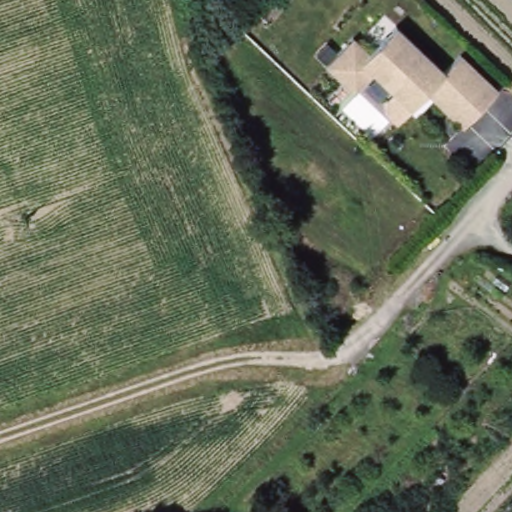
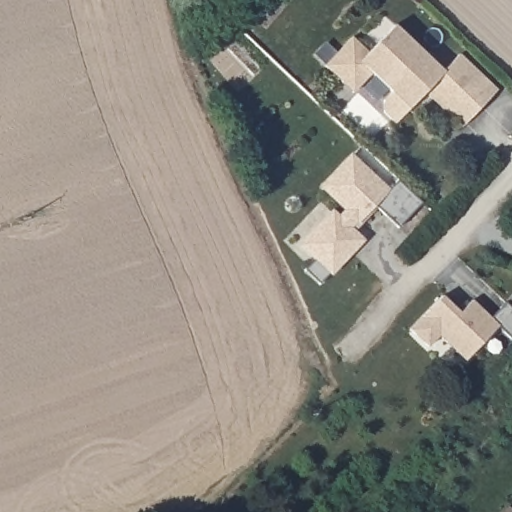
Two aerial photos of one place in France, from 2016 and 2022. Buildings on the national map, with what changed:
unchanged [(487,103),(463,128),(426,93),(397,124),(385,113),(385,101),(393,93),(373,74),(355,94),(343,83),(326,66),(353,38),(369,54),(395,26),(444,72),(460,55),(477,71),(498,91),(487,103)]
new [(305,246),(335,214),(341,220),(350,211),(325,188),(353,158),(390,192),(401,180),(425,203),(401,228),(377,206),(362,222),(359,219),(350,228),(364,241),(335,273),(323,286),(307,271),(319,259),(305,246)]
new [(441,296),(458,313),(471,300),(490,318),(505,302),(512,308),(512,341),(497,326),(465,360),(438,335),(427,346),(409,329),(441,296)]

